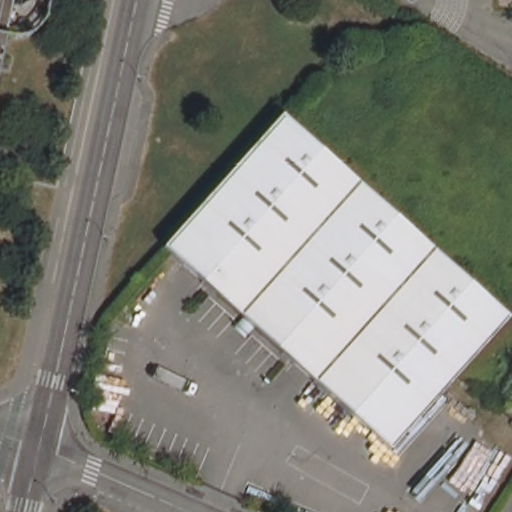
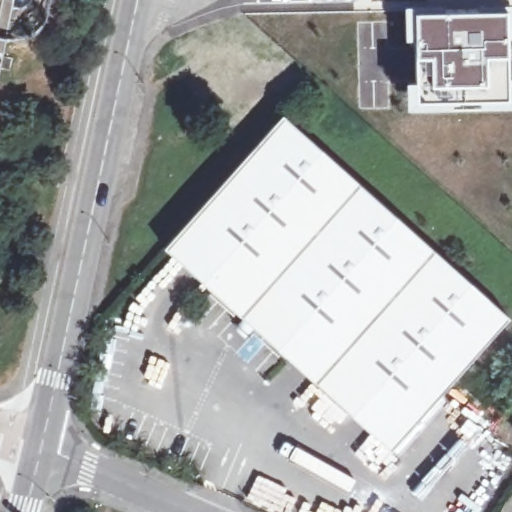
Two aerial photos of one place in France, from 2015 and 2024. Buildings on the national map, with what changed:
unchanged [(45,16),(45,17),(44,20),(42,24),(40,26),(38,29),(35,31),(32,34),(30,35),(26,36),(22,37),(20,38),(15,38),(12,38),(8,37),(5,36),(0,61),(0,0),(49,0),(45,16)]
new [(411,5),(486,5),(512,1),(512,18),(509,19),(510,105),(459,108),(405,109),(404,79),(413,78),(412,37),(403,37),(402,2),(411,2),(411,5)]
unchanged [(240,328),(243,323),(162,251),(281,118),(510,322),(391,455),(252,331),(248,335),(240,328)]

